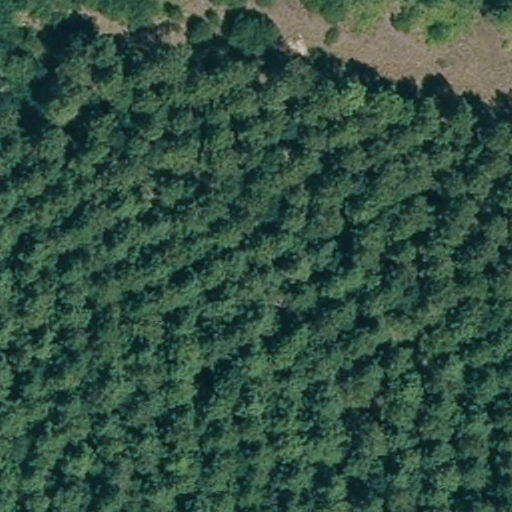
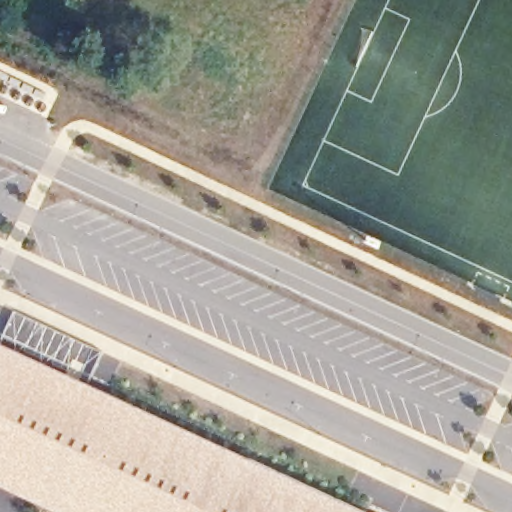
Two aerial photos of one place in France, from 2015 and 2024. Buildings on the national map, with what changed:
new [(367,512),(56,512),(0,486),(0,342),(367,512)]

